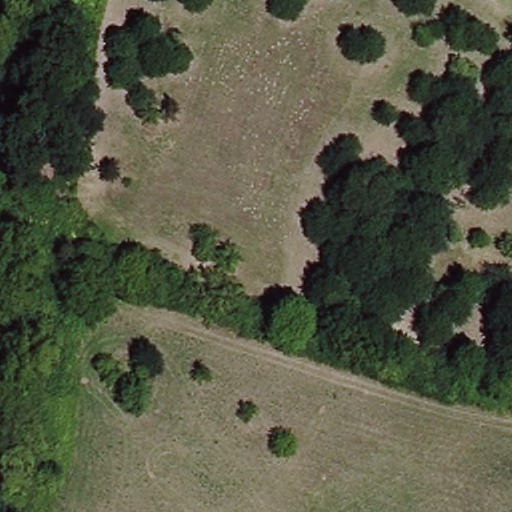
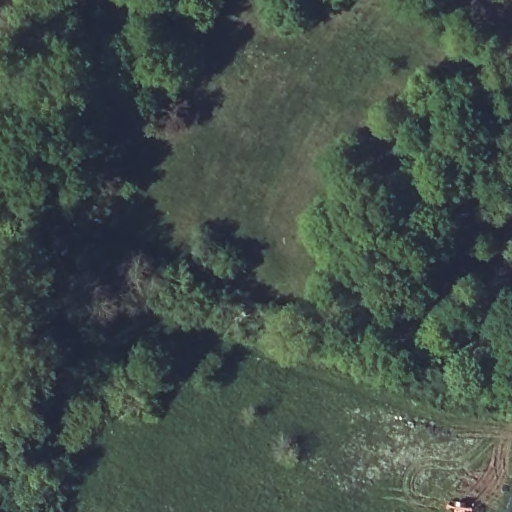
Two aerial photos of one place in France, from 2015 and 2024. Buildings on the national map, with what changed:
[]

